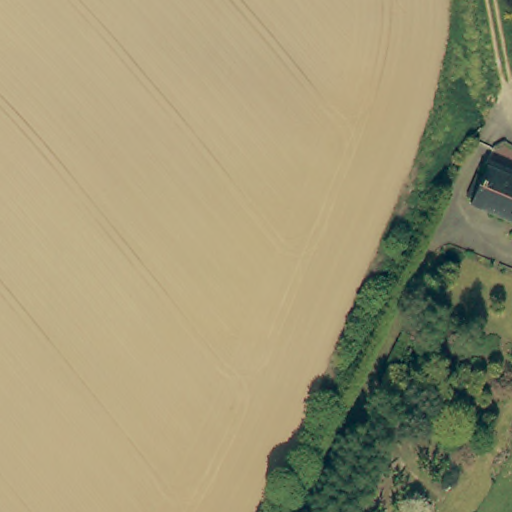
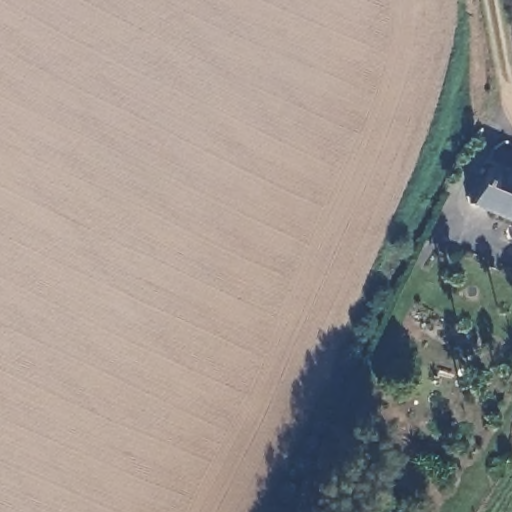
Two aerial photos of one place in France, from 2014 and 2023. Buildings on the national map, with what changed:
unchanged [(475,195),(468,191),(477,171),(485,174),(488,165),(512,175),(512,218),(472,201),(475,195)]

